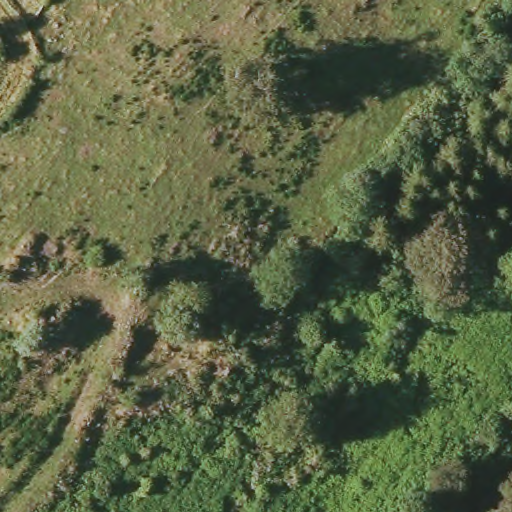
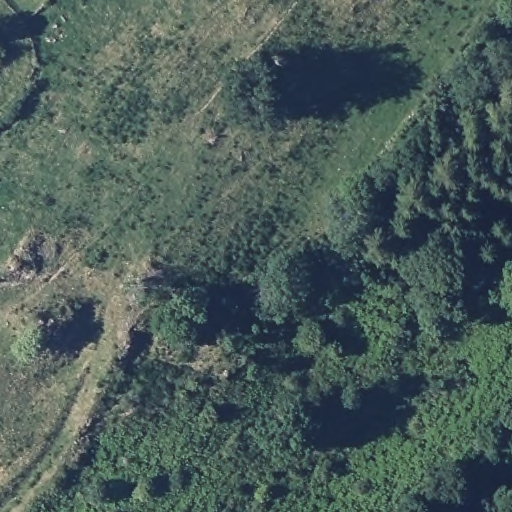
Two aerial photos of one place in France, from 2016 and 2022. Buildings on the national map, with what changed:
[]

